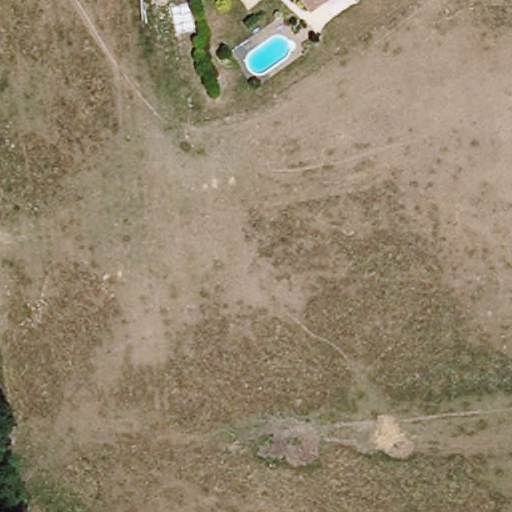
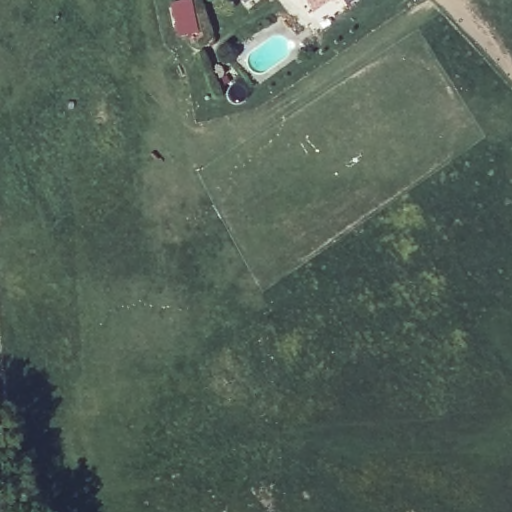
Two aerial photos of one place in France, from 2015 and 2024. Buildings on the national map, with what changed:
unchanged [(310,16),(300,0),(337,0),(310,16)]

